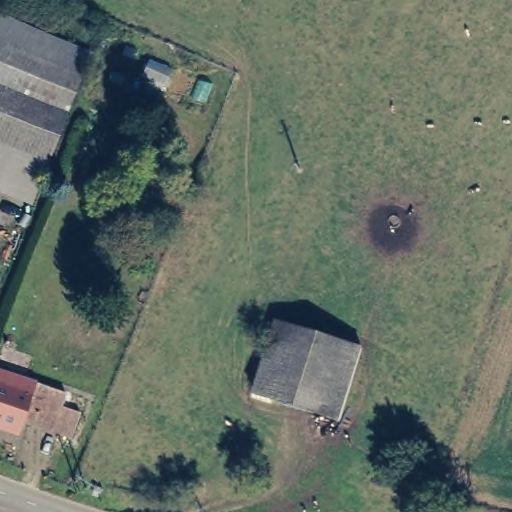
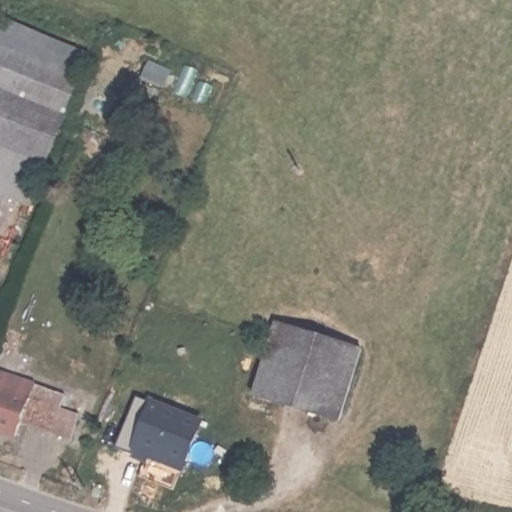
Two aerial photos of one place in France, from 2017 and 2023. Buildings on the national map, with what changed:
unchanged [(85,54),(62,116),(0,91),(0,21),(85,54)]
unchanged [(62,116),(45,162),(0,143),(0,91),(62,116)]
unchanged [(45,162),(29,200),(0,188),(0,143),(45,162)]
unchanged [(337,421),(252,398),(272,326),(356,347),(337,421)]
unchanged [(80,418),(72,438),(22,420),(13,439),(0,434),(0,388),(80,418)]
new [(184,472),(118,448),(139,396),(150,401),(152,399),(205,419),(184,472)]

